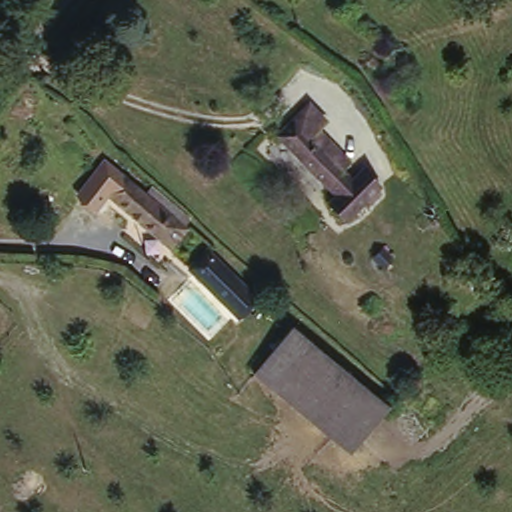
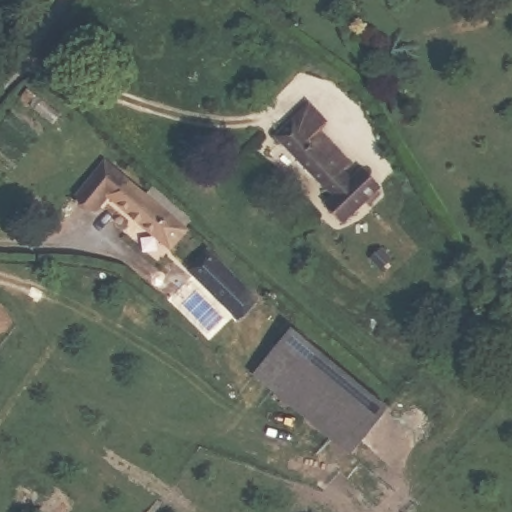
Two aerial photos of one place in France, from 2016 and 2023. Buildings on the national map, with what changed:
unchanged [(318,122),(314,128),(347,158),(340,165),(350,176),(361,163),(380,181),(343,221),(326,203),(333,195),(273,134),(300,105),(318,122)]
unchanged [(192,219),(184,228),(187,232),(171,253),(139,227),(101,198),(92,211),(75,198),(105,160),(145,193),(151,186),(192,219)]
unchanged [(383,243),(395,255),(389,261),(397,268),(390,276),(370,258),(383,243)]
unchanged [(210,248),(251,286),(265,299),(247,320),(192,270),(197,264),(210,248)]
unchanged [(288,327),(392,405),(357,453),(262,381),(255,376),(270,353),(288,327)]

